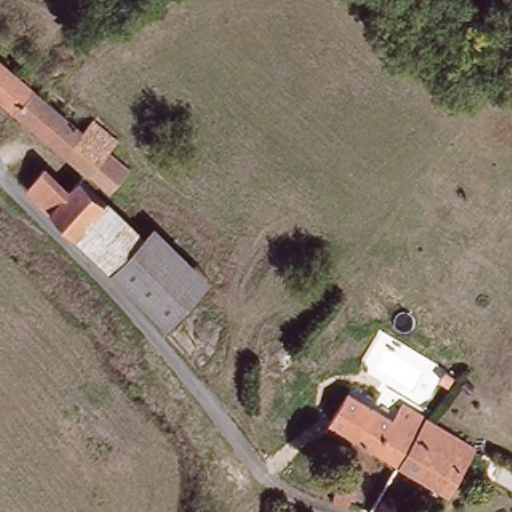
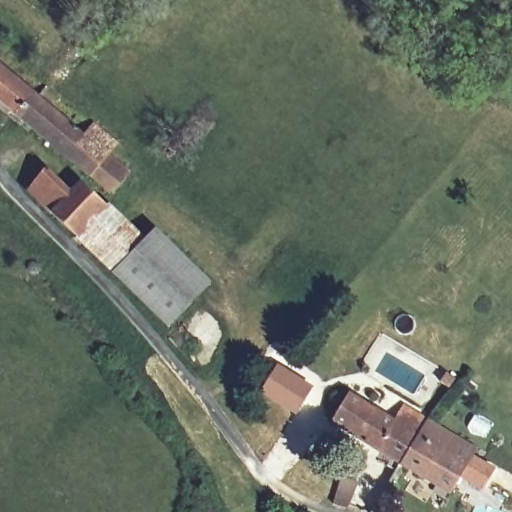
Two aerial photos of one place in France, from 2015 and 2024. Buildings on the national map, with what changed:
unchanged [(0,95),(0,60),(30,87),(12,106),(0,95)]
unchanged [(107,196),(86,175),(12,106),(30,87),(40,75),(82,112),(70,124),(83,135),(97,124),(123,149),(115,159),(130,173),(107,196)]
unchanged [(113,279),(23,186),(44,168),(72,195),(83,183),(110,209),(147,246),(113,279)]
unchanged [(206,283),(163,335),(113,279),(147,246),(155,238),(206,283)]
new [(278,365),(314,387),(297,415),(261,393),(278,365)]
unchanged [(388,418),(400,400),(433,423),(402,469),(333,423),(352,393),(388,418)]
unchanged [(402,469),(433,423),(475,453),(445,500),(402,469)]
unchanged [(349,512),(342,512),(335,511),(343,478),(356,481),(349,512)]

